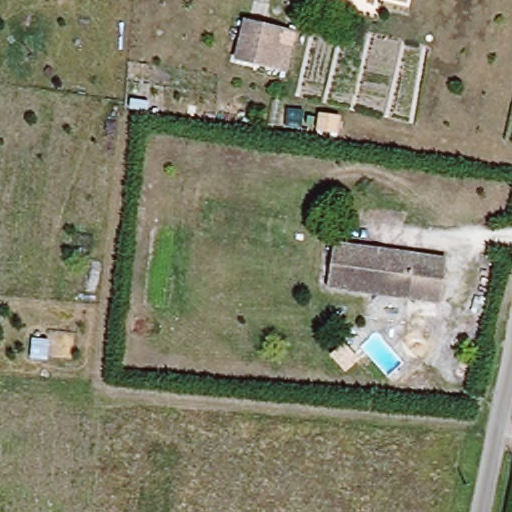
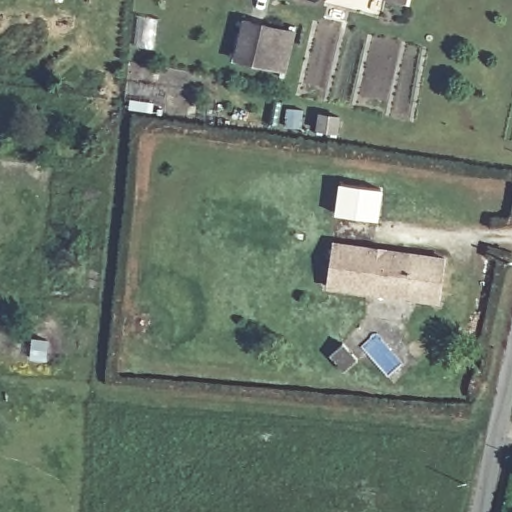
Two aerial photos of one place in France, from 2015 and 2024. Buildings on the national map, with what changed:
unchanged [(408,5),(391,0),(409,0),(408,5)]
unchanged [(285,32),(275,70),(236,60),(246,22),(285,32)]
new [(336,215),(339,184),(382,190),(378,220),(336,215)]
unchanged [(327,285),(333,244),(447,260),(441,302),(327,285)]

